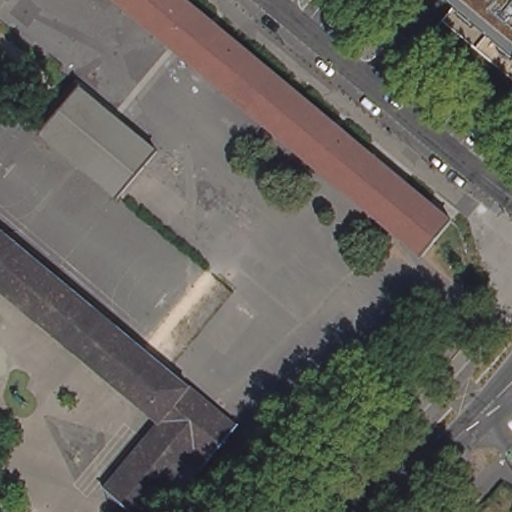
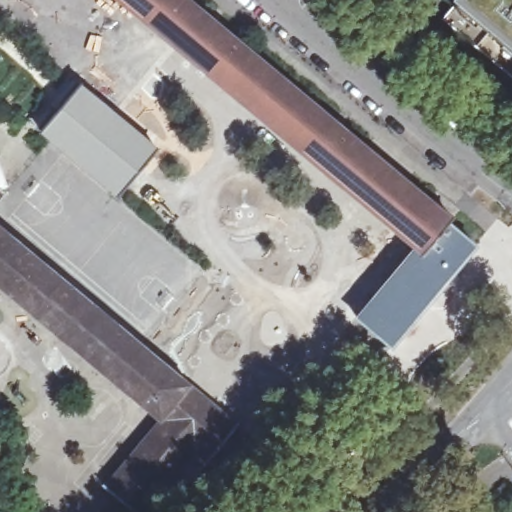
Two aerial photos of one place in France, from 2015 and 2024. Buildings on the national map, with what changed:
unchanged [(147,17),(142,14),(130,4),(126,0),(198,0),(217,16),(370,144),(397,166),(449,209),(419,245),(400,229),(172,39),(162,30),(147,17)]
unchanged [(449,0),(512,0),(512,57),(449,0)]
unchanged [(36,125),(53,105),(57,100),(75,80),(84,86),(145,137),(154,145),(149,150),(117,191),(40,129),(36,125)]
new [(0,190),(5,194),(0,200),(0,190)]
new [(419,245),(443,215),(478,246),(392,348),(355,317),(419,245)]
unchanged [(239,430),(202,473),(202,472),(190,462),(166,491),(148,512),(129,512),(105,492),(162,423),(0,288),(0,230),(204,401),(239,430)]

